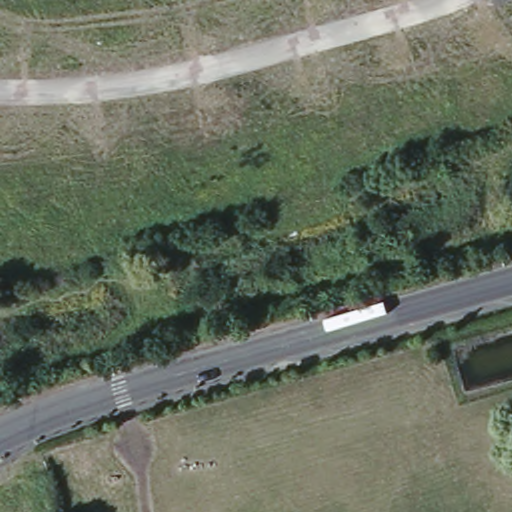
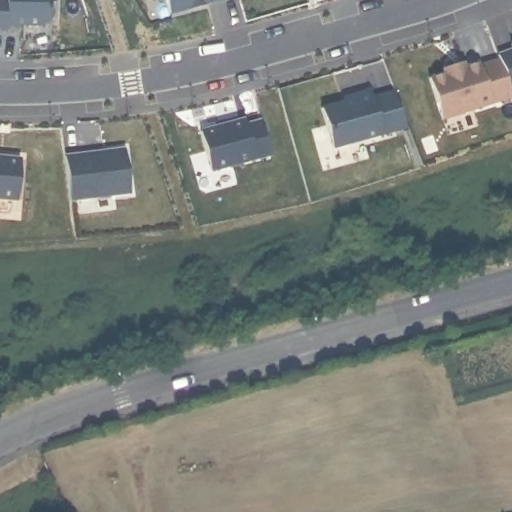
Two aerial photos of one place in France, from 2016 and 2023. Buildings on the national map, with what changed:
new [(7,0),(53,0),(53,6),(50,5),(50,21),(44,27),(7,26),(7,30),(0,30),(0,1),(6,1),(7,0)]
new [(172,13),(168,0),(220,0),(172,13)]
new [(512,53),(512,91),(511,91),(498,57),(512,53)]
new [(430,81),(445,76),(444,71),(462,66),(467,64),(469,68),(463,70),(484,63),(485,66),(500,62),(512,93),(512,99),(443,121),(430,81)]
new [(322,112),(350,104),(348,100),(370,92),(372,99),(395,92),(407,127),(334,150),(322,112)]
new [(245,122),(246,127),(261,123),(270,157),(211,172),(200,134),(245,122)]
new [(125,151),(130,195),(70,202),(65,159),(125,151)]
new [(17,202),(0,200),(0,159),(21,161),(17,202)]

